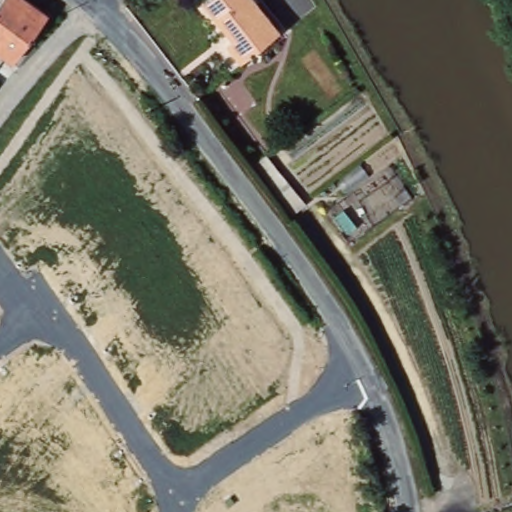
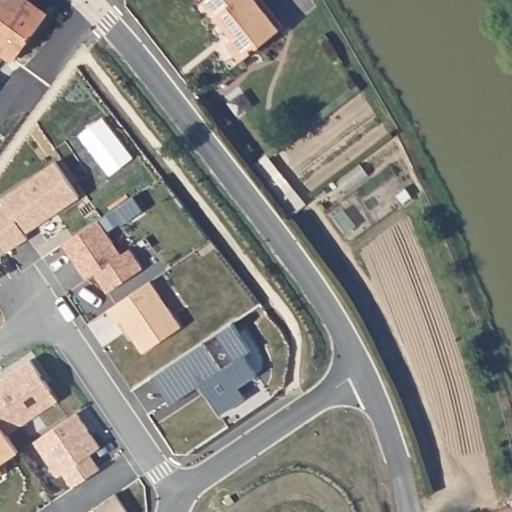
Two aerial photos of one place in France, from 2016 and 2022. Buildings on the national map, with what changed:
unchanged [(0,6),(4,0),(24,0),(39,11),(4,56),(0,53),(0,6)]
unchanged [(226,32),(202,0),(259,0),(278,27),(234,62),(218,41),(226,32)]
new [(7,215),(63,177),(86,212),(31,249),(34,253),(13,267),(0,248),(0,229),(11,222),(7,215)]
new [(119,222),(140,207),(150,222),(129,237),(115,246),(129,266),(137,260),(150,279),(115,304),(102,286),(94,292),(70,257),(105,232),(119,222)]
new [(158,292),(190,337),(151,363),(129,332),(125,336),(115,322),(158,292)]
new [(206,397),(179,415),(160,387),(211,351),(230,378),(243,369),(224,342),(239,332),(259,359),(252,363),(265,382),(247,395),(254,406),(229,423),(214,402),(211,405),(206,397)]
new [(18,449),(1,462),(4,472),(0,475),(0,397),(2,395),(0,392),(0,379),(29,359),(58,399),(8,435),(18,449)]
new [(100,446),(92,452),(101,466),(74,486),(63,471),(58,476),(34,442),(78,412),(100,446)]
new [(124,506),(128,512),(115,512),(124,506)]

